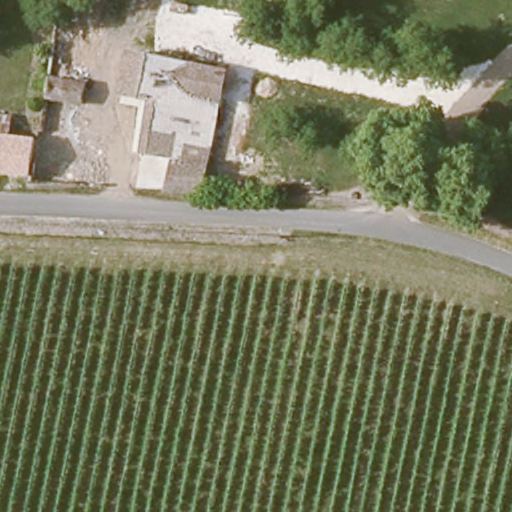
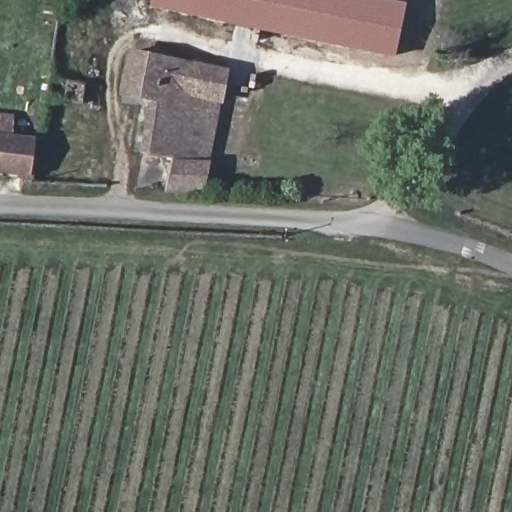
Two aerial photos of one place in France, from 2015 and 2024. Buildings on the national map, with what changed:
new [(151,0),(383,0),(400,4),(390,54),(150,4),(151,0)]
demolished [(134,31),(130,52),(79,48),(73,80),(92,82),(90,104),(52,100),(64,21),(134,31)]
unchanged [(164,191),(170,155),(150,152),(157,96),(130,92),(136,54),(233,74),(207,195),(164,191)]
unchanged [(0,134),(0,111),(31,115),(29,138),(0,134)]
unchanged [(31,175),(0,173),(0,134),(29,138),(35,139),(31,175)]

